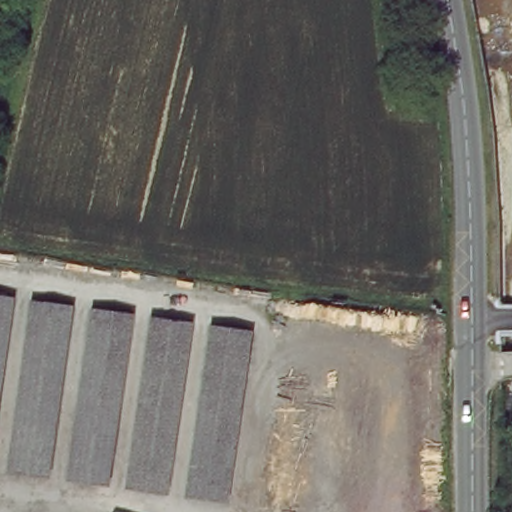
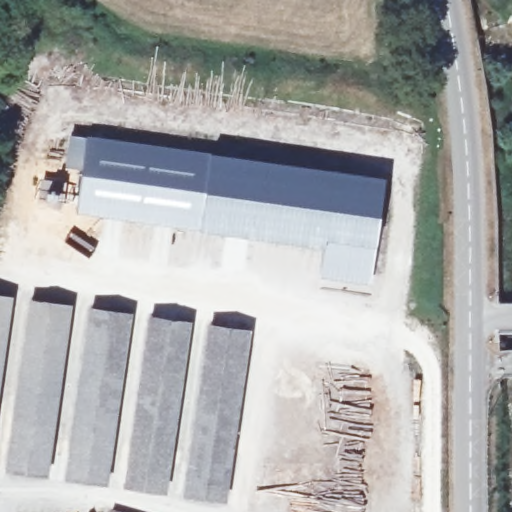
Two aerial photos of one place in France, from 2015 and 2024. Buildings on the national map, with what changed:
new [(72,154),(77,121),(94,124),(330,167),(331,158),(400,169),(409,170),(401,222),(394,271),(339,263),(344,231),(321,227),(320,236),(83,201),(89,157),(72,154)]
unchanged [(16,303),(0,414),(0,301),(16,303)]
unchanged [(7,473),(32,306),(70,311),(45,478),(7,473)]
unchanged [(70,478),(93,311),(131,316),(105,483),(70,478)]
unchanged [(121,482),(147,315),(187,321),(162,488),(121,482)]
unchanged [(183,493),(208,325),(246,332),(220,498),(183,493)]
unchanged [(133,512),(117,512),(119,507),(133,512)]

